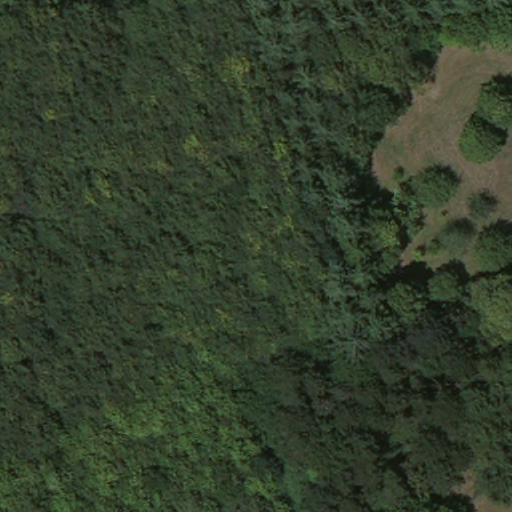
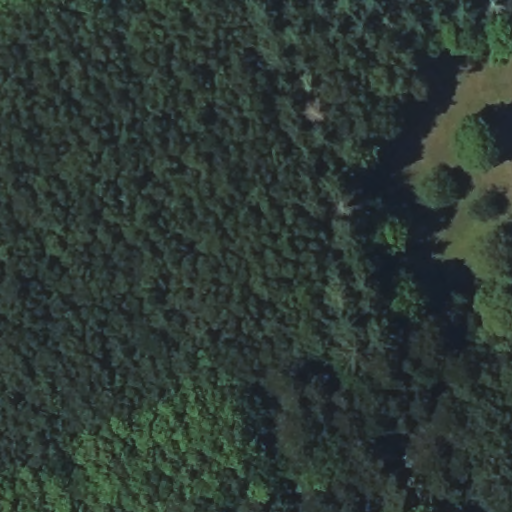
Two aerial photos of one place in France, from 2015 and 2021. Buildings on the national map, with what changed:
[]

